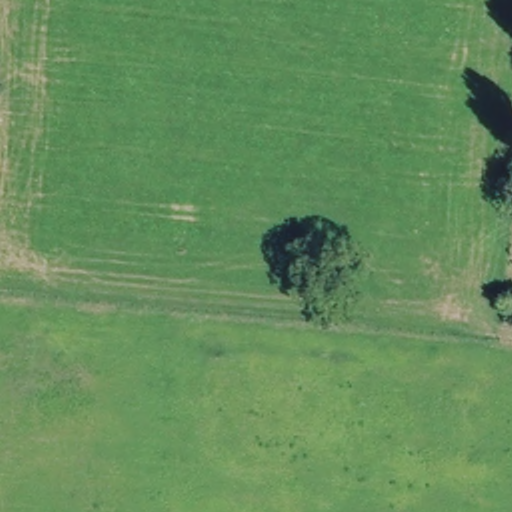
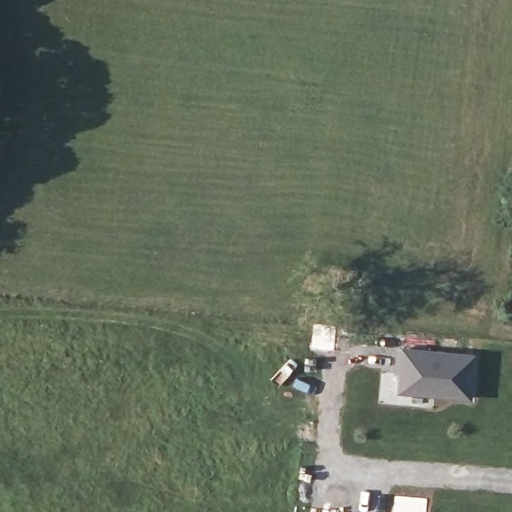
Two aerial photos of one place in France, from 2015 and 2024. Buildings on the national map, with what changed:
new [(477,354),(472,399),(399,392),(401,373),(396,372),(398,347),(477,354)]

